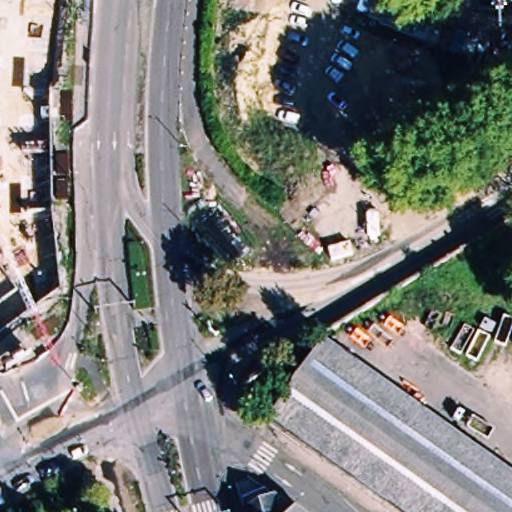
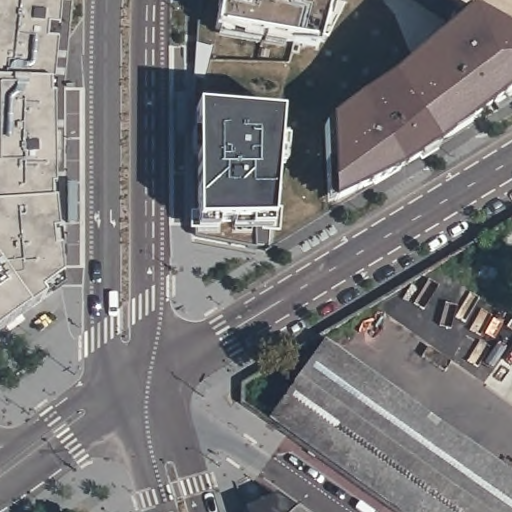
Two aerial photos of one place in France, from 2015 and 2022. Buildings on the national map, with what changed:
new [(0,0),(59,0),(55,32),(45,31),(45,43),(55,45),(50,86),(48,86),(47,99),(52,99),(52,192),(48,191),(49,204),(52,204),(60,279),(61,287),(43,298),(26,311),(0,329),(0,0)]
new [(316,46),(216,29),(220,0),(329,0),(316,46)]
new [(491,27),(512,39),(512,91),(472,123),(402,170),(332,206),(328,122),(390,83),(415,64),(467,14),(491,27)]
new [(279,130),(270,221),(277,231),(257,230),(256,248),(195,235),(195,222),(195,109),(280,116),(279,130)]
unchanged [(321,343),(512,476),(512,512),(396,512),(264,420),(321,343)]
unchanged [(266,486),(303,512),(239,512),(236,505),(266,486)]

